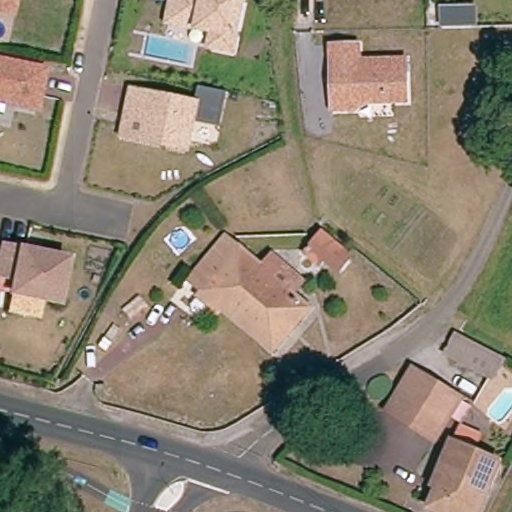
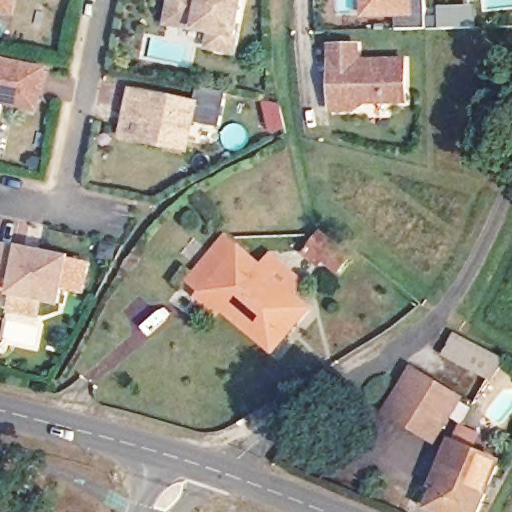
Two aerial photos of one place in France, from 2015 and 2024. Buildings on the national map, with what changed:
unchanged [(13,10),(0,7),(0,0),(15,0),(13,10)]
unchanged [(239,39),(234,54),(205,48),(208,33),(192,30),(164,24),(170,0),(247,0),(239,39)]
new [(397,27),(397,17),(362,17),(362,0),(426,0),(426,25),(397,27)]
unchanged [(438,5),(476,4),(477,26),(438,29),(438,5)]
unchanged [(360,45),(360,61),(408,60),(409,100),(369,101),(356,109),(334,110),(333,45),(360,45)]
unchanged [(46,69),(39,106),(0,99),(0,59),(46,69)]
unchanged [(198,85),(228,92),(220,128),(195,122),(199,102),(194,101),(198,85)]
unchanged [(167,142),(145,138),(126,134),(132,106),(135,89),(199,102),(192,138),(190,147),(167,142)]
unchanged [(337,276),(308,252),(323,234),(352,257),(337,276)]
unchanged [(11,310),(15,290),(18,275),(0,272),(0,259),(3,242),(71,256),(62,300),(48,296),(44,316),(11,310)]
unchanged [(273,356),(189,286),(228,242),(260,269),(271,256),(284,266),(308,286),(297,300),(311,311),(273,356)]
unchanged [(456,338),(503,358),(495,378),(440,355),(456,338)]
unchanged [(412,371),(460,398),(436,439),(388,412),(412,371)]
unchanged [(438,470),(447,451),(496,470),(478,512),(432,512),(428,510),(445,472),(438,470)]

